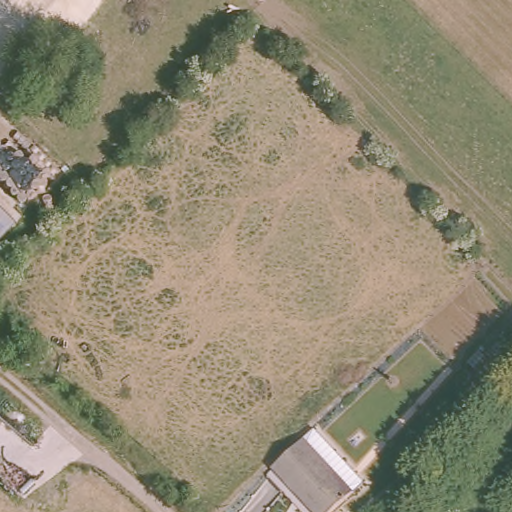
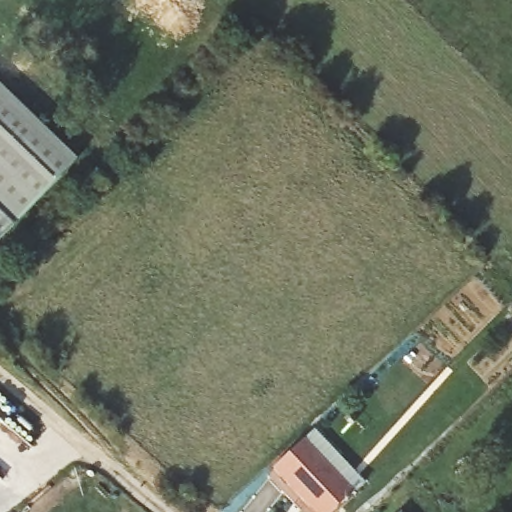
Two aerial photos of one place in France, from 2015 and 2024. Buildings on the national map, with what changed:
new [(0,213),(0,86),(78,161),(14,226),(0,213)]
unchanged [(14,226),(0,240),(0,213),(14,226)]
unchanged [(282,492),(267,476),(277,466),(309,436),(320,426),(340,448),(368,480),(358,489),(333,512),(302,512),(282,492)]

